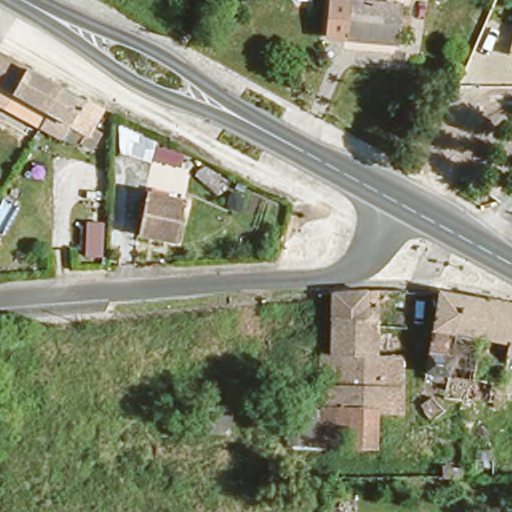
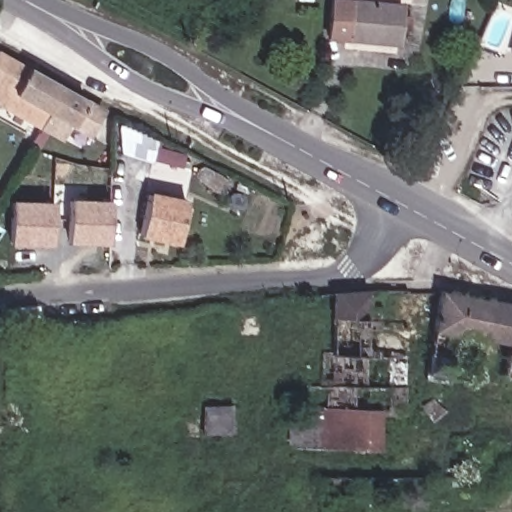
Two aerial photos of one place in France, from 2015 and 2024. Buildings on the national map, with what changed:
unchanged [(325,35),(328,0),(399,0),(398,13),(408,14),(406,30),(396,30),(396,44),(344,36),(325,35)]
unchanged [(508,54),(512,39),(512,55),(508,54)]
unchanged [(0,82),(0,48),(14,56),(0,82)]
unchanged [(16,97),(12,102),(0,96),(0,82),(14,56),(58,81),(40,111),(16,97)]
unchanged [(96,138),(85,132),(83,136),(67,127),(63,135),(41,122),(46,115),(40,111),(58,81),(85,96),(101,105),(97,112),(109,118),(96,138)]
unchanged [(118,115),(159,135),(149,162),(115,146),(118,115)]
unchanged [(136,241),(142,208),(161,211),(166,176),(186,180),(180,215),(173,249),(136,241)]
new [(76,200),(116,202),(115,243),(75,241),(76,200)]
new [(19,201),(59,202),(56,243),(17,241),(19,201)]
unchanged [(306,396),(306,382),(313,382),(312,370),(320,370),(320,365),(320,362),(320,349),(331,348),(332,292),(332,286),(363,286),(375,285),(374,349),(401,350),(399,404),(371,404),(321,404),(320,419),(298,419),(297,397),(306,396)]
unchanged [(421,370),(436,285),(490,294),(476,371),(474,378),(446,374),(421,370)]
unchanged [(452,408),(442,406),(443,395),(446,374),(474,378),(476,371),(490,294),(512,298),(512,374),(507,373),(503,401),(470,398),(468,411),(452,408)]
unchanged [(321,404),(371,404),(372,441),(320,441),(320,419),(321,404)]

